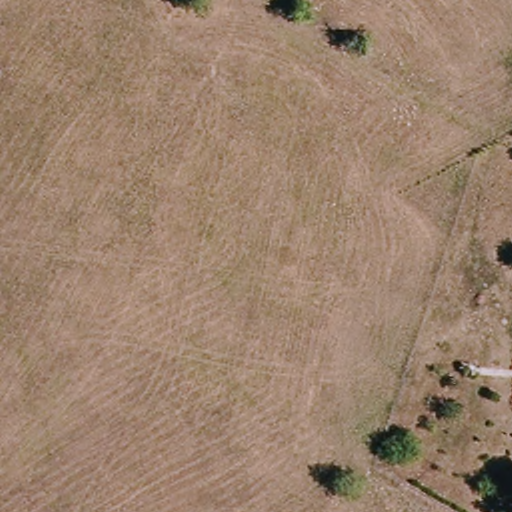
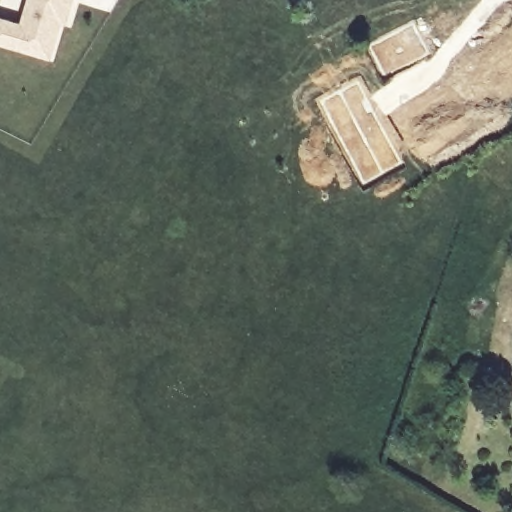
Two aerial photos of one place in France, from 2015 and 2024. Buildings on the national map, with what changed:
new [(18,20),(24,0),(72,0),(51,60),(0,45),(0,15),(18,20)]

